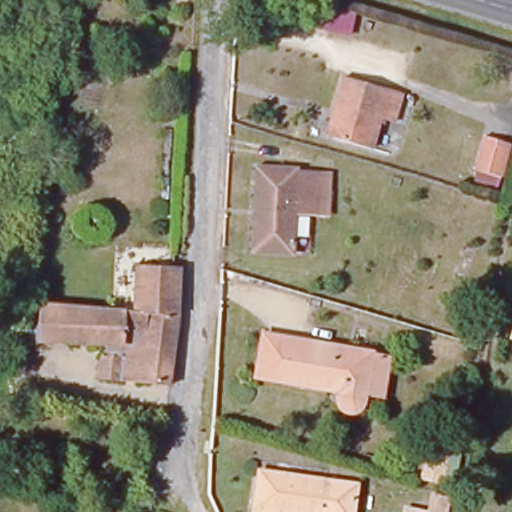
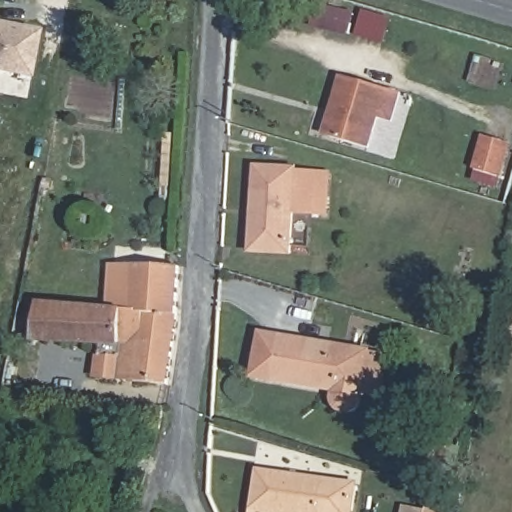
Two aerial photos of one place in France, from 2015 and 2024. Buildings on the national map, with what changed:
new [(0,73),(0,22),(37,29),(27,77),(0,73)]
unchanged [(327,115),(337,80),(393,98),(387,127),(371,124),(364,151),(332,142),(321,139),(327,115)]
unchanged [(510,145),(498,180),(475,172),(485,138),(510,145)]
unchanged [(292,174),(293,177),(317,179),(317,182),(330,184),(327,217),(292,216),(289,260),(247,256),(250,171),(292,174)]
unchanged [(96,350),(31,344),(34,310),(117,315),(130,316),(133,270),(179,271),(177,336),(168,390),(116,385),(93,383),(96,350)]
unchanged [(512,312),(512,342),(504,340),(512,312)]
unchanged [(376,403),(360,400),(354,410),(345,411),(337,409),(332,402),(328,395),(272,384),(280,345),(367,358),(382,361),(376,403)]
unchanged [(458,450),(443,485),(430,482),(442,445),(458,450)]
unchanged [(252,508),(258,470),(353,484),(349,512),(284,512),(252,508)]
unchanged [(442,512),(429,512),(432,496),(445,500),(442,512)]
unchanged [(252,508),(284,512),(252,512),(252,508)]

